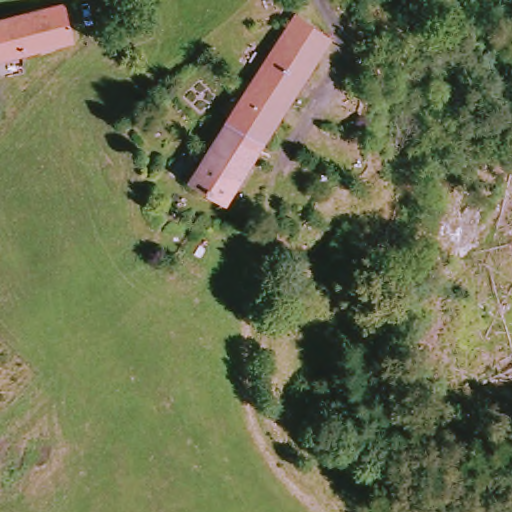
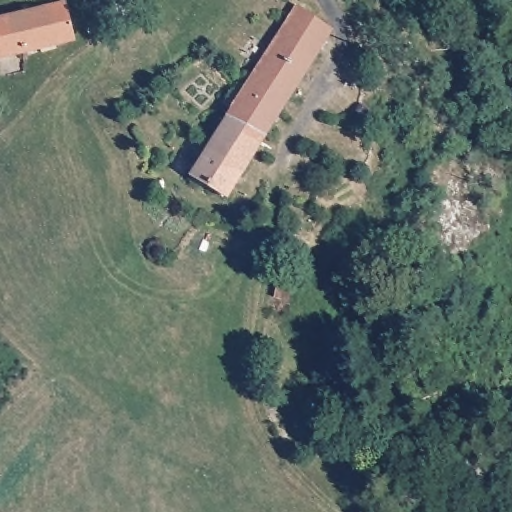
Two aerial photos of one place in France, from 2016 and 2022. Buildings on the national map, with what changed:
unchanged [(56,7),(67,5),(74,38),(2,57),(0,51),(0,21),(56,7)]
unchanged [(266,135),(232,113),(250,84),(302,7),(334,27),(270,129),(266,135)]
unchanged [(232,113),(266,135),(232,195),(198,172),(232,113)]

